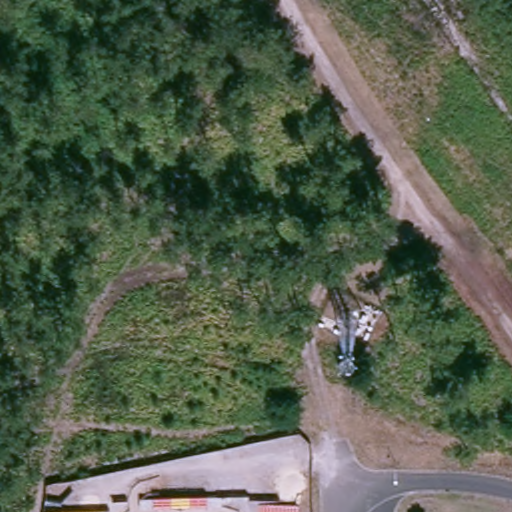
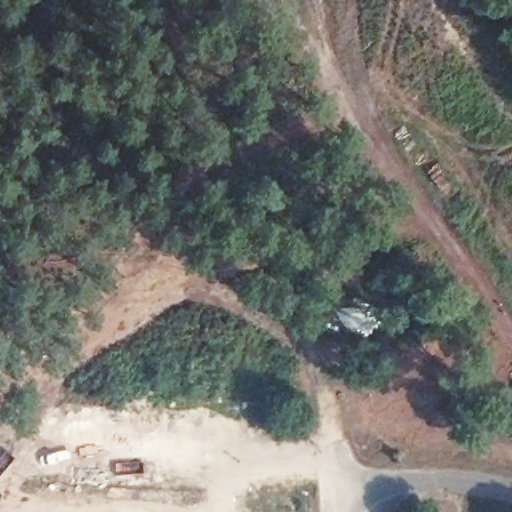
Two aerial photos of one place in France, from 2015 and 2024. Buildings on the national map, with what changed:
unchanged [(260,512),(260,506),(298,505),(299,512),(260,512)]
unchanged [(74,512),(45,512),(45,511),(74,512)]

